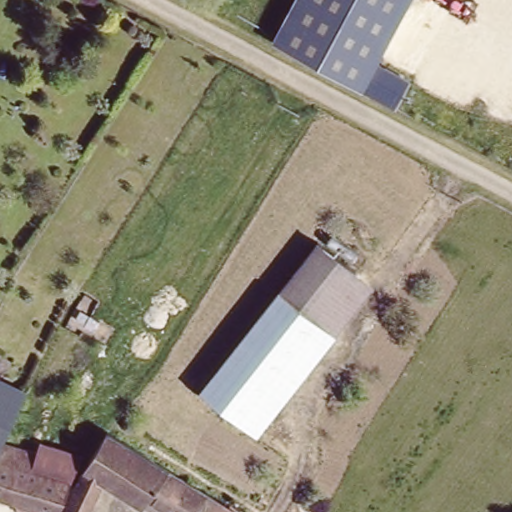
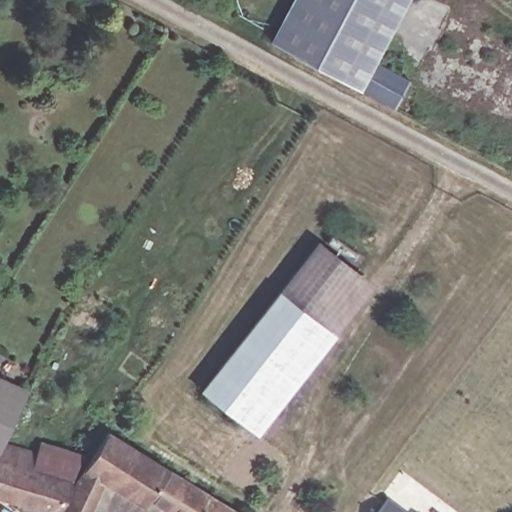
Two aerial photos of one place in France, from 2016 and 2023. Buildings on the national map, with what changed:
unchanged [(411,0),(369,81),(280,35),(298,0),(411,0)]
unchanged [(312,238),(372,280),(253,433),(195,388),(312,238)]
unchanged [(33,381),(14,414),(0,409),(0,370),(33,381)]
unchanged [(3,440),(0,448),(0,409),(14,414),(3,440)]
unchanged [(104,430),(210,494),(240,512),(172,512),(143,496),(137,505),(102,481),(82,512),(60,512),(104,430)]
unchanged [(30,468),(35,452),(40,439),(79,457),(70,482),(30,468)]
unchanged [(3,440),(35,452),(30,468),(70,482),(56,512),(32,512),(33,510),(0,500),(0,448),(3,440)]
new [(388,500),(406,512),(379,512),(388,500)]

